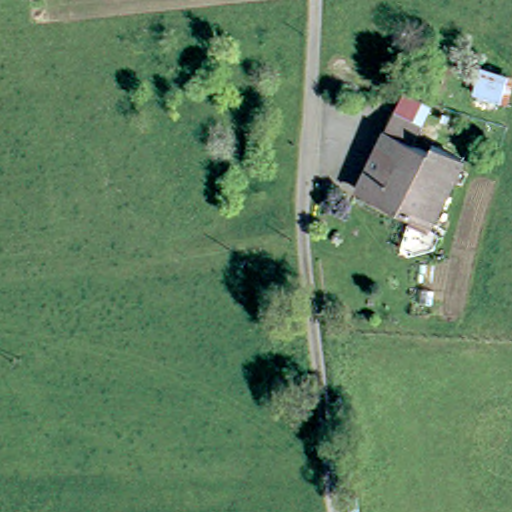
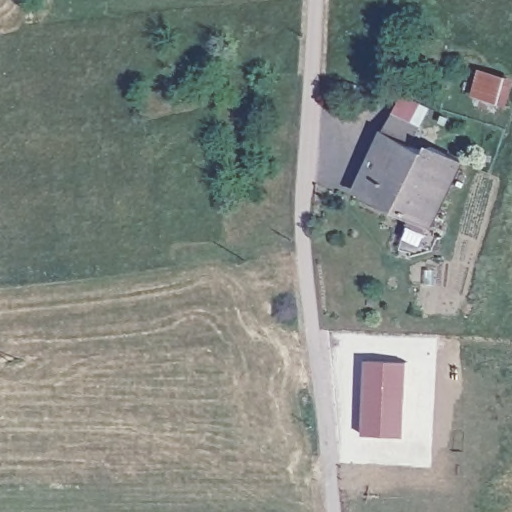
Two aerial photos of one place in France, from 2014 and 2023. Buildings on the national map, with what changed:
unchanged [(512,87),(504,109),(472,99),(484,67),(512,78),(512,87)]
unchanged [(467,161),(432,237),(412,231),(418,214),(360,187),(385,132),(389,133),(397,110),(424,122),(414,144),(433,152),(437,146),(467,161)]
new [(405,437),(364,435),(367,361),(409,361),(405,437)]

